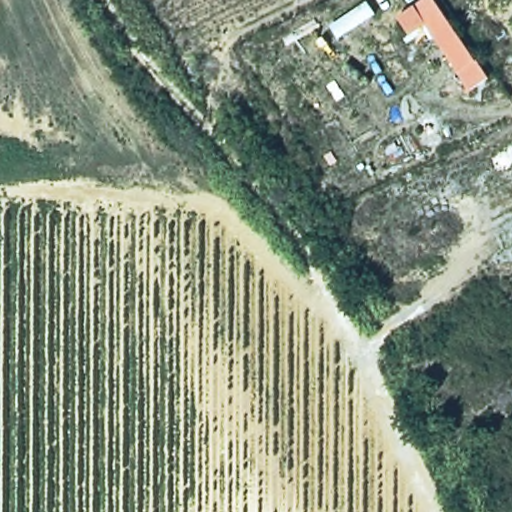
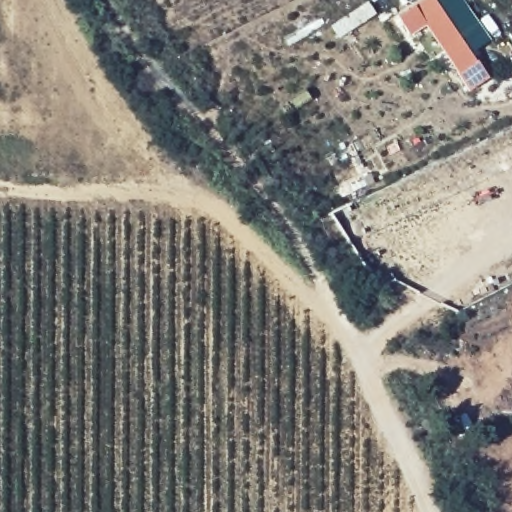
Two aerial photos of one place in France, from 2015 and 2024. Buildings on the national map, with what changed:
unchanged [(403,37),(395,22),(427,0),(430,0),(438,16),(403,37)]
unchanged [(485,82),(467,95),(433,42),(450,32),(485,82)]

